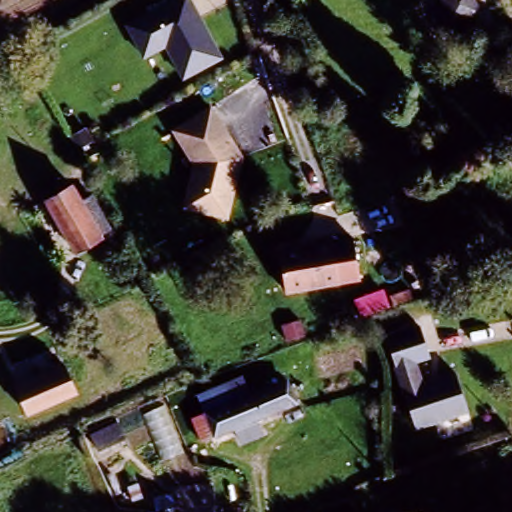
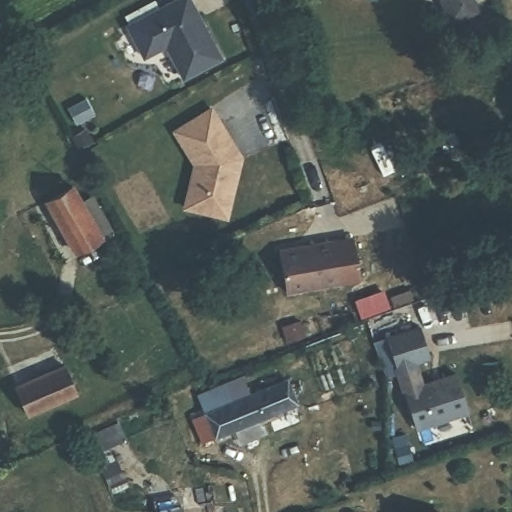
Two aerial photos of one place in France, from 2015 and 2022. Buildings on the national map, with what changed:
unchanged [(197,0),(226,57),(188,77),(173,46),(150,57),(130,24),(171,0),(197,0)]
unchanged [(446,0),(467,0),(449,6),(446,0)]
unchanged [(197,164),(176,126),(217,103),(249,158),(234,219),(187,207),(197,164)]
unchanged [(71,202),(104,254),(81,268),(49,216),(71,202)]
unchanged [(283,246),(349,236),(357,276),(288,292),(283,246)]
unchanged [(461,420),(413,438),(400,401),(389,371),(393,370),(383,340),(423,327),(433,356),(414,363),(425,393),(450,384),(461,420)]
unchanged [(62,367),(74,392),(27,413),(15,388),(62,367)]
unchanged [(257,392),(289,377),(299,400),(260,417),(266,429),(245,438),(240,426),(220,437),(201,393),(245,373),(257,392)]
unchanged [(125,420),(132,437),(101,450),(95,432),(125,420)]

